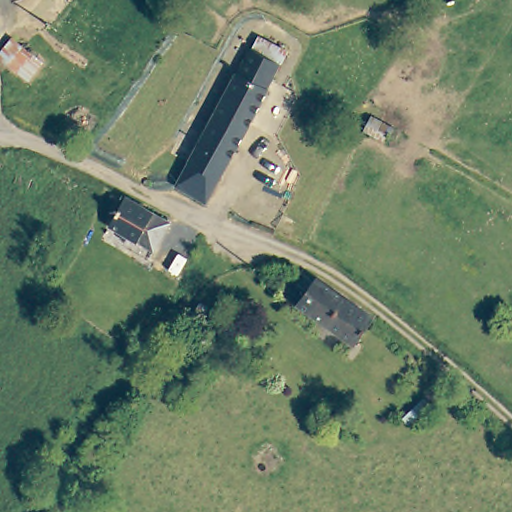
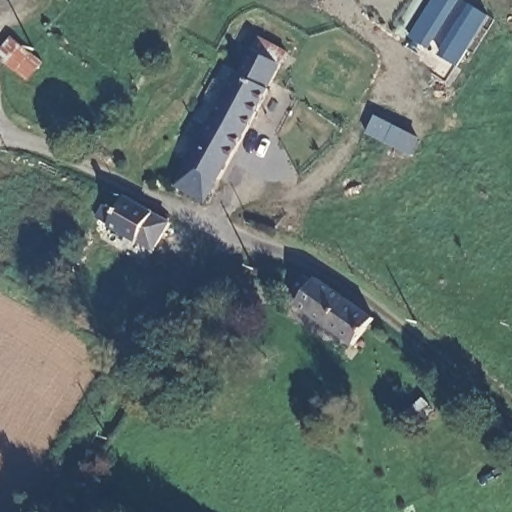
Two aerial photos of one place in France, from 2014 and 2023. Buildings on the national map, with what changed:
new [(428,49),(410,37),(432,0),(460,0),(428,49)]
new [(471,5),(489,15),(456,66),(439,55),(471,5)]
unchanged [(205,188),(180,174),(192,153),(191,152),(224,92),(212,85),(224,64),(236,71),(240,62),(241,63),(254,38),(255,39),(262,27),(287,41),(281,52),(284,55),(271,79),(272,80),(222,171),(219,170),(211,182),(205,188)]
unchanged [(27,81),(0,60),(0,50),(10,37),(27,50),(42,62),(27,81)]
unchanged [(362,132),(370,116),(392,127),(392,128),(395,130),(396,131),(397,133),(397,135),(396,137),(395,139),(394,140),(392,140),(390,140),(387,139),(385,142),(362,132)]
unchanged [(104,225),(107,217),(113,220),(129,192),(174,219),(157,246),(122,226),(117,233),(104,225)]
unchanged [(290,300),(297,289),(287,281),(296,270),(298,270),(306,277),(310,273),(367,314),(365,318),(348,341),(290,300)]
unchanged [(189,320),(199,302),(207,307),(197,325),(189,320)]

